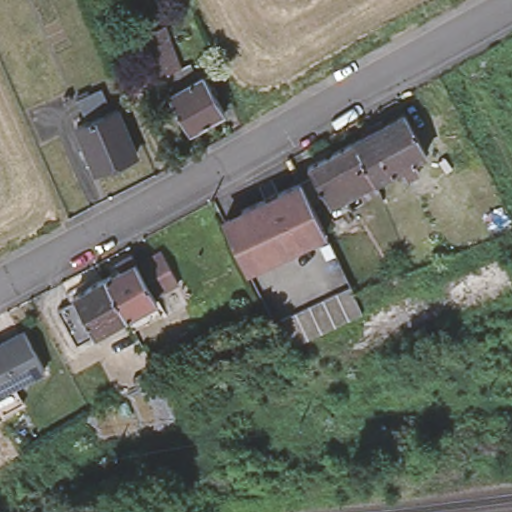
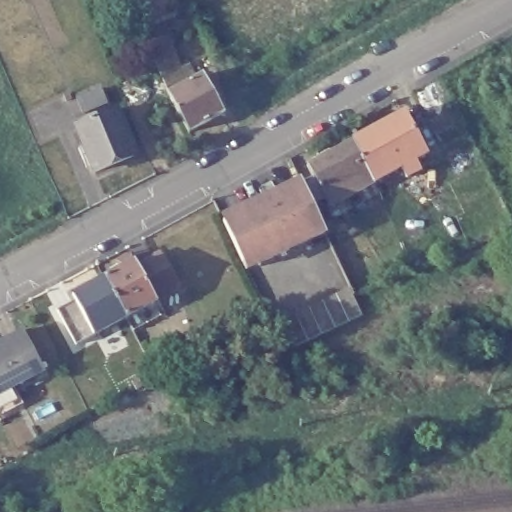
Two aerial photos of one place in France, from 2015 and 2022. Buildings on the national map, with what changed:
unchanged [(168,91),(158,69),(147,45),(145,38),(157,32),(160,39),(165,36),(176,60),(186,56),(195,76),(202,72),(223,110),(187,129),(167,91),(168,91)]
unchanged [(100,104),(77,115),(69,99),(92,88),(100,104)]
unchanged [(130,156),(90,173),(71,128),(111,111),(130,156)]
unchanged [(354,139),(406,111),(427,150),(375,178),(354,139)]
unchanged [(354,139),(375,178),(330,201),(310,163),(354,139)]
unchanged [(237,216),(235,211),(297,183),(322,235),(260,262),(242,270),(220,223),(222,222),(237,216)]
unchanged [(315,310),(312,304),(321,299),(297,252),(324,240),(350,296),(315,310)]
unchanged [(321,299),(312,304),(268,326),(245,276),(297,252),(321,299)]
unchanged [(129,315),(127,318),(107,277),(122,268),(118,262),(132,255),(135,261),(136,263),(160,253),(175,283),(152,293),(155,301),(153,302),(162,316),(135,329),(129,315)]
unchanged [(58,307),(77,297),(76,295),(107,277),(127,318),(96,334),(77,343),(58,307)]
unchanged [(0,344),(22,333),(42,373),(12,389),(20,406),(0,416),(0,344)]

